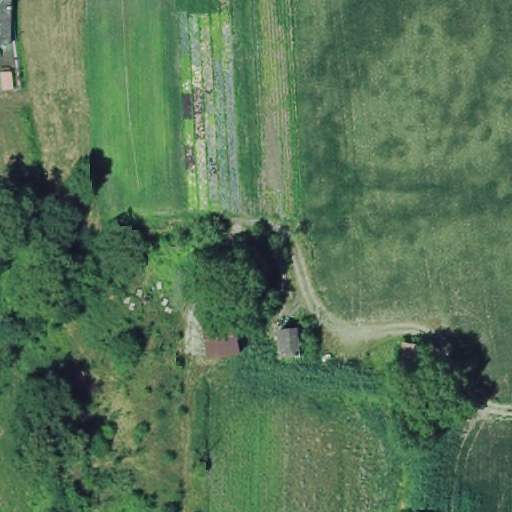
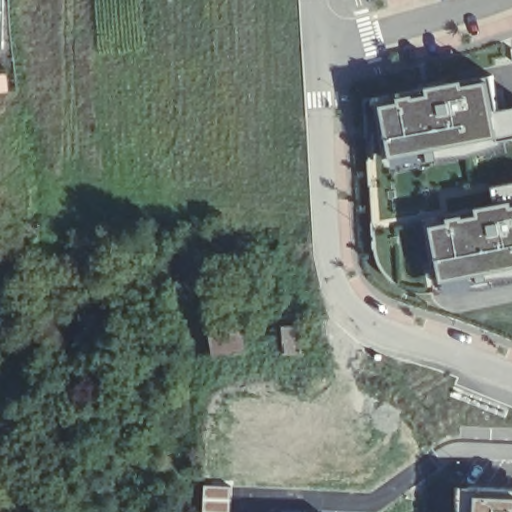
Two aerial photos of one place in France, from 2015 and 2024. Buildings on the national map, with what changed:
new [(490,79),(496,113),(512,111),(512,142),(383,162),(373,101),(490,79)]
new [(489,210),(485,189),(512,184),(512,272),(434,286),(423,221),(489,210)]
unchanged [(211,317),(243,312),(250,353),(217,358),(211,317)]
unchanged [(283,331),(300,329),(303,356),(286,358),(283,331)]
demolished [(409,340),(427,342),(425,367),(406,365),(409,340)]
new [(233,485),(232,512),(203,512),(204,483),(233,485)]
new [(512,490),(512,512),(458,512),(460,487),(512,490)]

